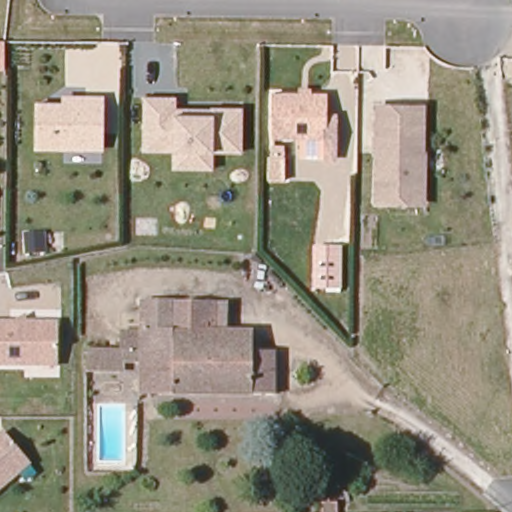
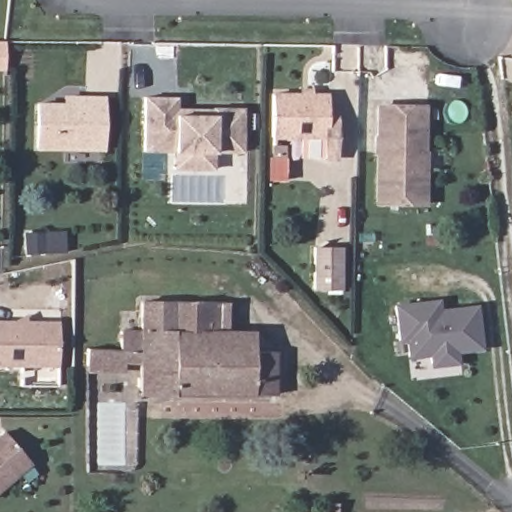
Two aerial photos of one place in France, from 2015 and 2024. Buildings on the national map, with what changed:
unchanged [(5,69),(0,69),(0,41),(6,41),(5,69)]
unchanged [(328,92),(329,135),(273,135),(272,92),(328,92)]
unchanged [(178,107),(245,109),(245,153),(213,152),(213,173),(171,172),(172,153),(141,151),(141,94),(178,95),(178,107)]
unchanged [(88,150),(38,149),(39,105),(66,105),(66,97),(86,98),(104,98),(104,134),(104,150),(88,150)]
unchanged [(425,205),(374,206),(373,105),(426,103),(425,205)]
new [(316,247),(346,248),(344,293),(314,292),(316,247)]
unchanged [(109,326),(138,326),(138,298),(176,299),(177,325),(226,327),(250,328),(251,346),(276,347),(278,396),(135,389),(136,358),(137,347),(108,345),(109,326)]
unchanged [(207,300),(225,301),(226,327),(177,325),(176,299),(207,300)]
new [(457,352),(459,364),(430,367),(429,357),(408,358),(406,342),(398,342),(393,305),(439,299),(440,308),(478,304),(482,350),(457,352)]
unchanged [(56,365),(0,366),(0,323),(56,322),(56,365)]
unchanged [(137,347),(136,358),(115,357),(113,367),(106,367),(78,366),(79,343),(104,345),(108,345),(137,347)]
unchanged [(17,446),(29,462),(0,482),(0,433),(6,430),(17,446)]

